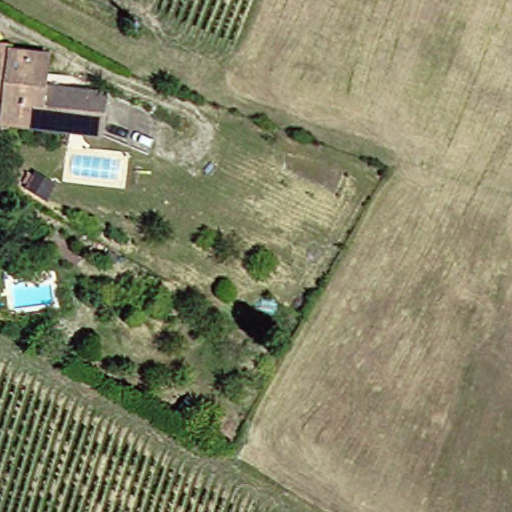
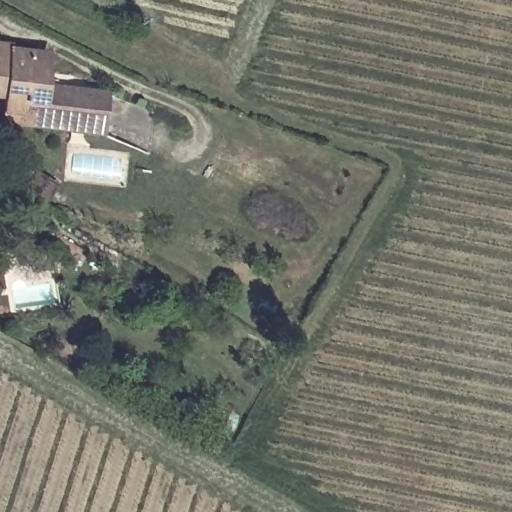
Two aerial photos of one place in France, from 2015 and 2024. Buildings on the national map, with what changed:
unchanged [(10,49),(49,54),(46,79),(94,84),(91,115),(43,110),(15,107),(16,96),(5,95),(5,98),(0,98),(0,44),(11,45),(10,49)]
unchanged [(108,85),(105,114),(103,134),(95,133),(2,123),(5,98),(5,95),(16,96),(15,107),(43,110),(91,115),(94,84),(108,85)]
unchanged [(81,249),(75,261),(44,244),(50,232),(81,249)]

